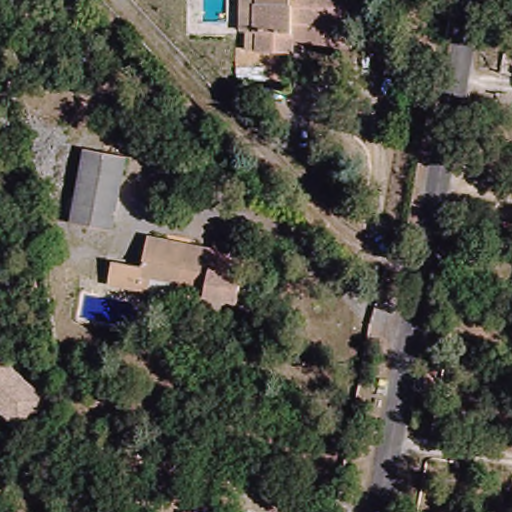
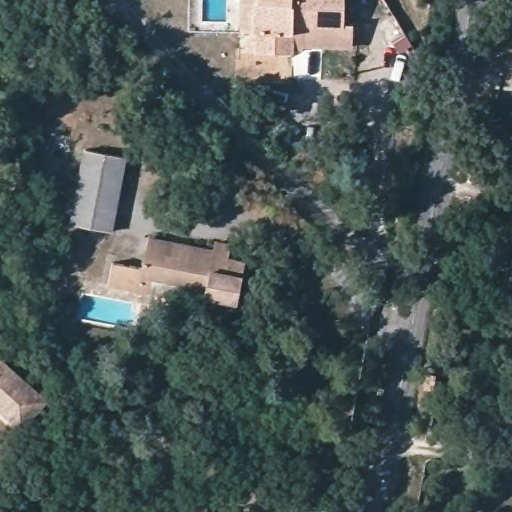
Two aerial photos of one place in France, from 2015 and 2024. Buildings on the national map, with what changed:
unchanged [(339,0),(339,20),(349,20),(349,43),(289,40),(289,44),(255,43),(255,21),(239,21),(239,0),(339,0)]
unchanged [(128,156),(114,228),(75,219),(88,147),(128,156)]
unchanged [(148,287),(118,280),(123,257),(153,264),(159,238),(226,254),(228,249),(242,252),(240,259),(252,262),(249,277),(244,304),(187,292),(188,282),(163,276),(161,289),(148,287)]
unchanged [(2,361),(50,400),(25,429),(0,408),(0,360),(2,361)]
unchanged [(297,512),(182,512),(183,506),(297,512)]

